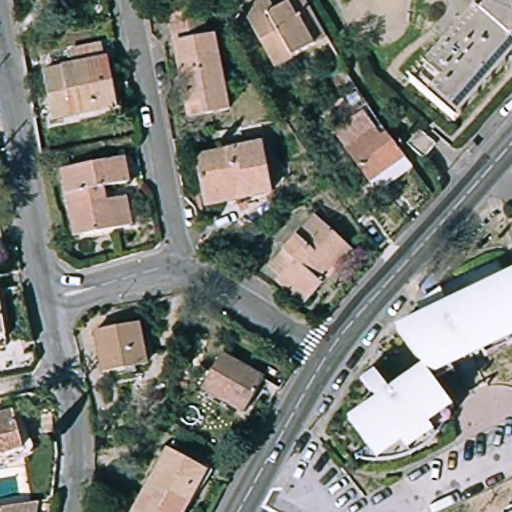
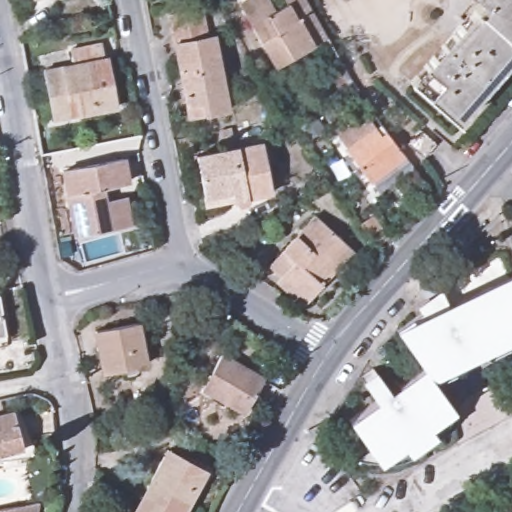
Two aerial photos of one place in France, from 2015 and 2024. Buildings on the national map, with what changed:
unchanged [(330,45),(278,77),(241,11),(260,0),(267,0),(276,16),(289,8),(284,0),(305,0),(325,37),(330,45)]
unchanged [(478,4),(473,0),(512,0),(512,56),(453,123),(409,84),(478,4)]
unchanged [(186,109),(170,18),(209,11),(228,110),(199,116),(188,118),(186,109)]
unchanged [(47,90),(42,66),(78,60),(74,45),(97,41),(100,56),(102,56),(112,104),(80,111),(52,117),(47,90)]
unchanged [(344,92),(337,81),(350,73),(356,84),(344,92)]
unchanged [(374,182),(368,175),(357,182),(327,140),(357,121),(364,131),(370,126),(395,157),(400,165),(374,182)]
unchanged [(412,159),(397,146),(409,133),(423,145),(412,159)]
unchanged [(205,199),(197,157),(262,145),(270,196),(231,203),(206,208),(205,199)]
unchanged [(129,224),(113,227),(70,235),(57,172),(117,160),(121,180),(100,184),(103,201),(108,200),(123,197),(129,224)]
unchanged [(273,277),(278,272),(266,261),(308,216),(349,253),(307,299),(302,304),(273,277)]
unchanged [(486,353),(435,380),(455,410),(430,428),(435,436),(410,454),(405,446),(380,463),(352,425),(380,405),(365,383),(377,374),(393,396),(427,371),(402,335),(429,315),(424,309),(448,292),(445,286),(506,256),(512,266),(512,350),(490,360),(486,353)]
unchanged [(3,338),(0,339),(0,317),(3,338)]
unchanged [(104,374),(96,336),(140,327),(147,366),(104,374)]
unchanged [(221,355),(263,379),(241,417),(200,393),(221,355)]
unchanged [(20,413),(30,450),(0,458),(0,419),(20,413)]
unchanged [(165,451),(204,472),(183,512),(158,512),(138,500),(146,485),(165,451)]
unchanged [(132,512),(138,500),(158,512),(132,512)]
unchanged [(43,512),(0,512),(0,510),(45,502),(43,512)]

